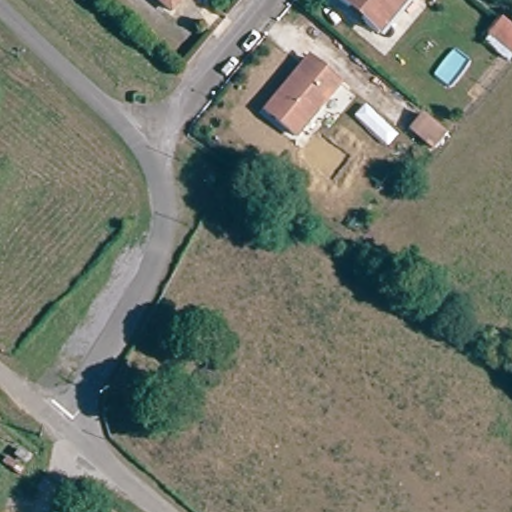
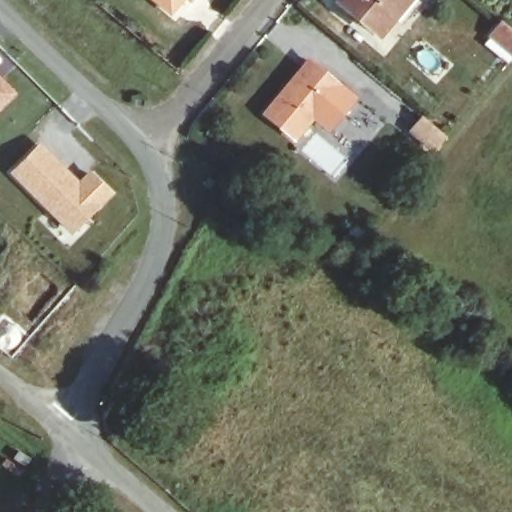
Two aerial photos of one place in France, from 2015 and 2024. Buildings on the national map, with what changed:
unchanged [(339,1),(339,0),(409,0),(379,35),(339,1)]
unchanged [(512,29),(512,54),(491,37),(503,22),(512,29)]
unchanged [(295,138),(266,113),(309,62),(339,87),(295,138)]
new [(0,112),(0,75),(19,93),(0,112)]
unchanged [(435,151),(412,132),(424,116),(435,125),(448,136),(435,151)]
new [(80,180),(90,169),(113,194),(73,235),(10,174),(43,141),(80,180)]

